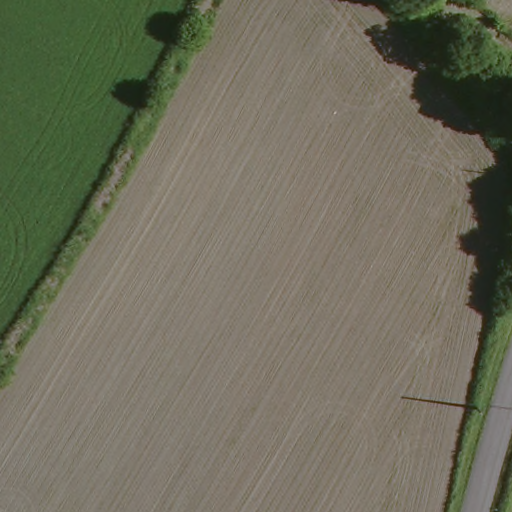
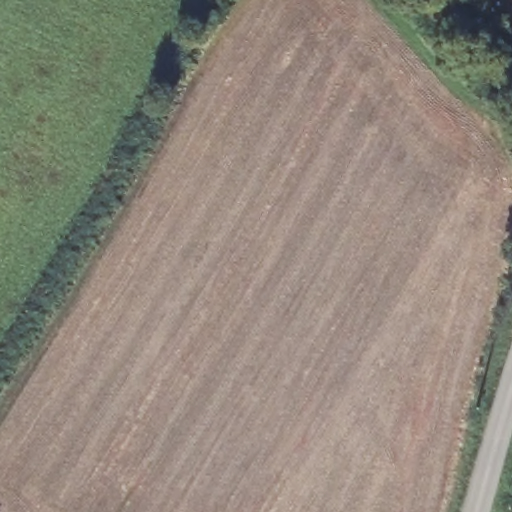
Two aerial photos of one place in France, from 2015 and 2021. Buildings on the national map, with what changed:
[]

